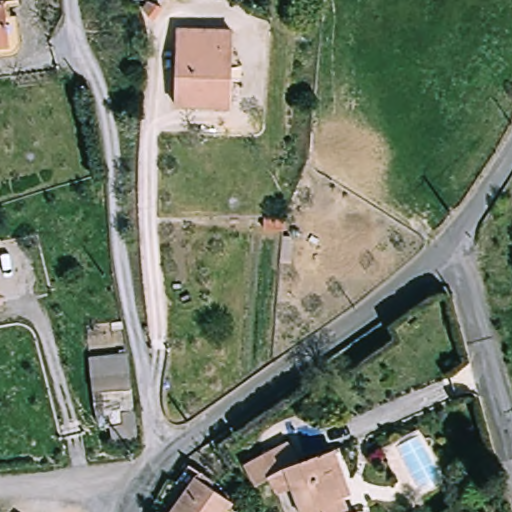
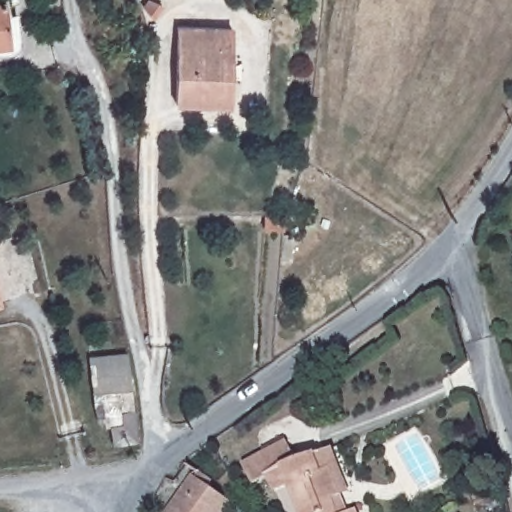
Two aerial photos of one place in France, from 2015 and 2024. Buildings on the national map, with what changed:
unchanged [(8,0),(8,14),(11,42),(0,43),(0,0),(8,0)]
unchanged [(153,19),(142,6),(147,1),(162,6),(153,19)]
unchanged [(25,54),(0,56),(0,43),(11,42),(8,14),(22,13),(25,54)]
unchanged [(223,107),(178,106),(181,27),(234,29),(233,68),(232,108),(223,107)]
unchanged [(263,228),(264,217),(283,219),(282,229),(263,228)]
unchanged [(282,241),(291,242),(290,257),(280,256),(281,241),(282,241)]
unchanged [(5,301),(0,302),(0,273),(5,301)]
unchanged [(118,442),(113,421),(106,418),(103,416),(101,411),(96,389),(92,352),(128,349),(136,405),(140,437),(118,442)]
unchanged [(360,512),(302,512),(291,486),(276,492),(269,477),(255,483),(246,461),(291,442),(300,464),(318,457),(335,450),(341,465),(350,489),(357,506),(360,512)]
unchanged [(223,512),(173,512),(200,473),(213,482),(209,489),(229,503),(223,512)]

